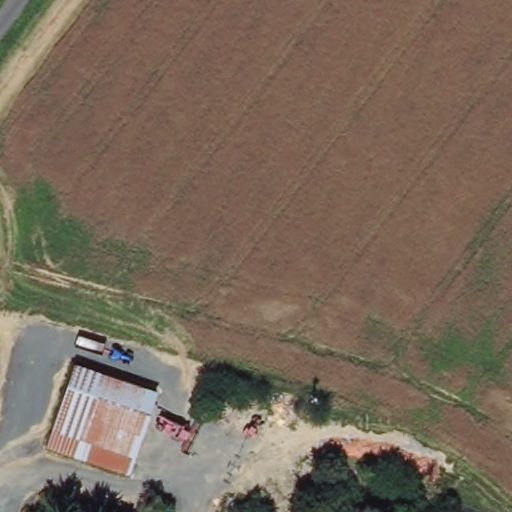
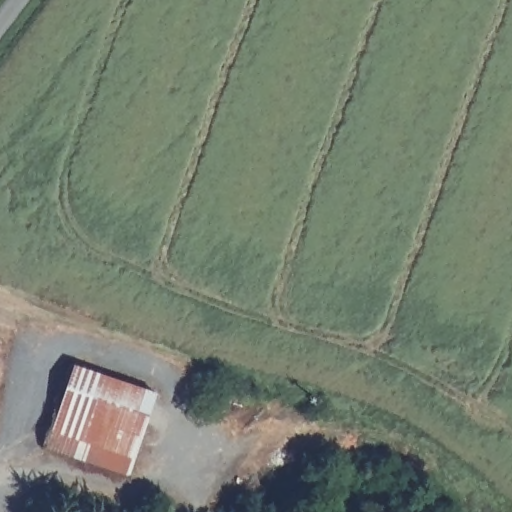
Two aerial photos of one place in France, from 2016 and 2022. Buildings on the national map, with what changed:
unchanged [(155,394),(129,473),(49,447),(74,368),(155,394)]

